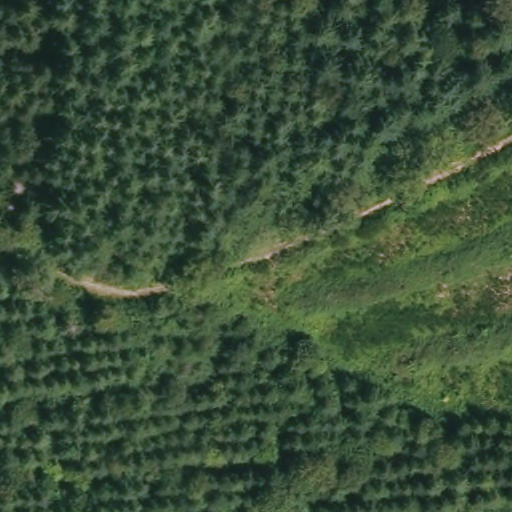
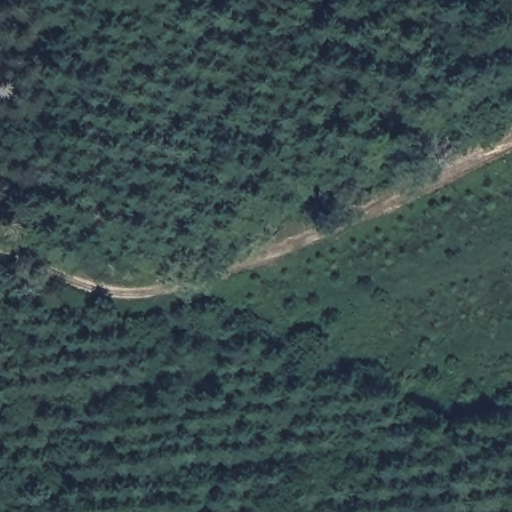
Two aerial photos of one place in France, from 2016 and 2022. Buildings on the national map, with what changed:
[]

